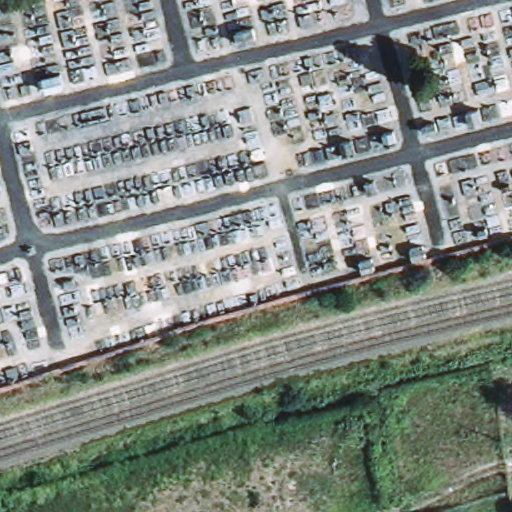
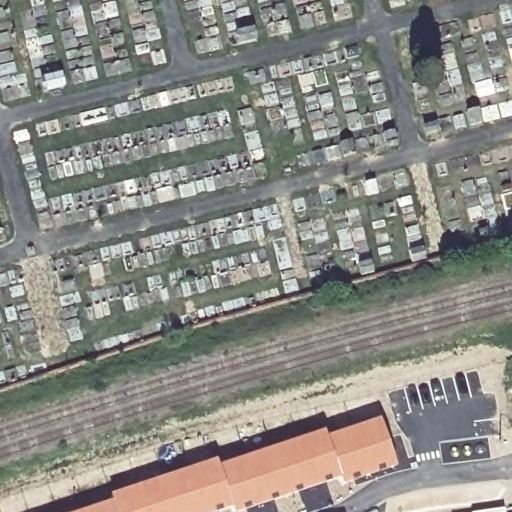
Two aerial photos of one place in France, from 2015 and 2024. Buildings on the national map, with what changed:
demolished [(480,430),(405,441),(401,407),(475,396),(480,430)]
new [(379,417),(397,468),(341,484),(340,480),(326,434),(379,417)]
new [(325,429),(326,434),(340,480),(238,512),(232,512),(232,509),(218,464),(325,429)]
new [(216,458),(218,464),(232,509),(222,512),(115,512),(111,499),(109,494),(216,458)]
new [(111,499),(115,512),(74,512),(111,499)]

